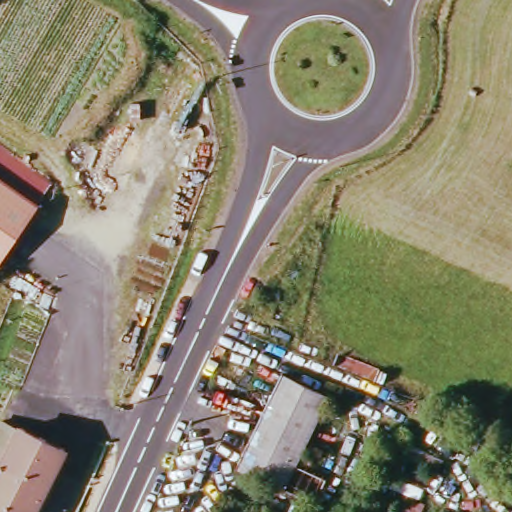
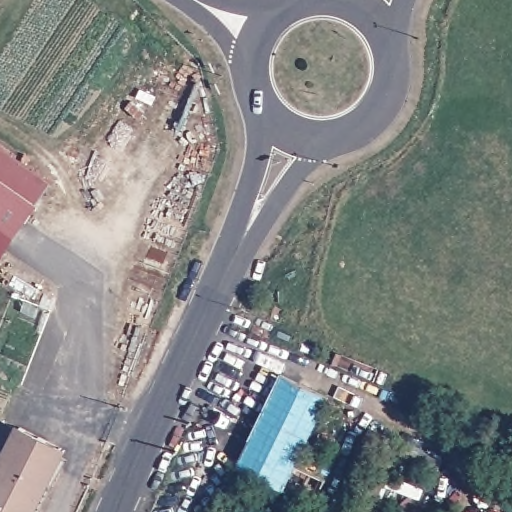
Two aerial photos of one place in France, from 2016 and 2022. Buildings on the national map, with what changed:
unchanged [(53,189),(0,264),(0,152),(53,189)]
unchanged [(332,396),(285,486),(237,464),(285,372),(332,396)]
unchanged [(9,419),(23,428),(28,421),(72,445),(38,512),(9,512),(0,507),(0,437),(9,419)]

